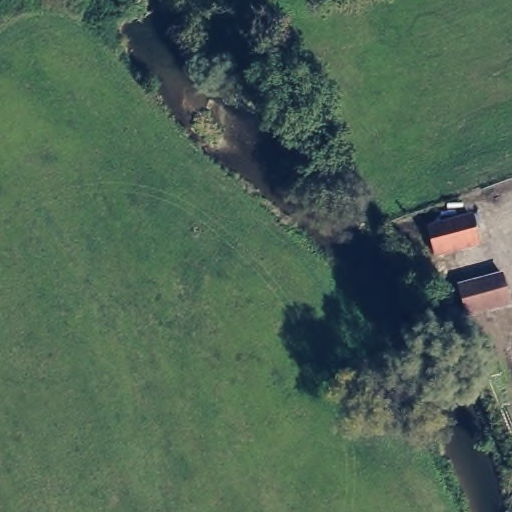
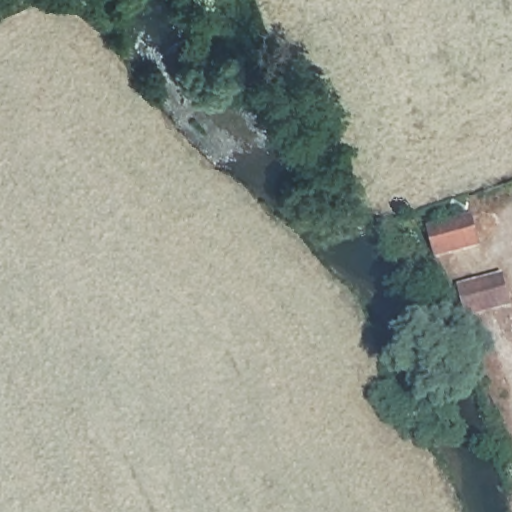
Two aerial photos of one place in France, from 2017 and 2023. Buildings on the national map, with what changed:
unchanged [(478,245),(435,257),(427,228),(470,216),(478,245)]
unchanged [(502,275),(510,304),(465,315),(458,286),(502,275)]

